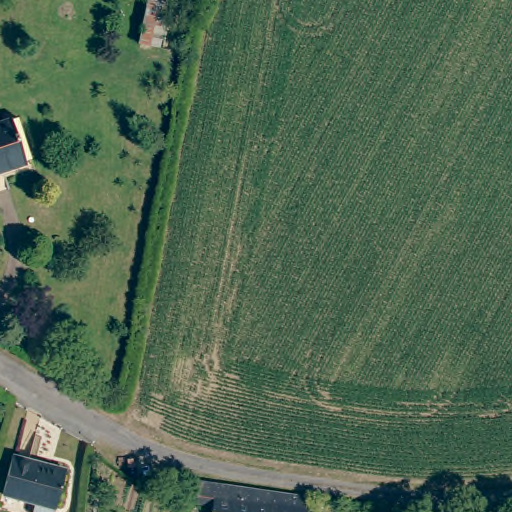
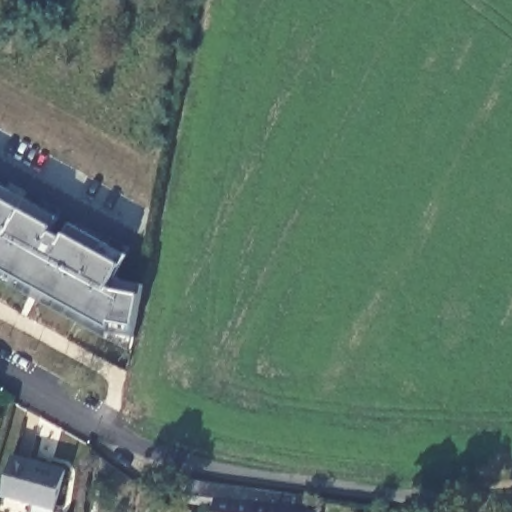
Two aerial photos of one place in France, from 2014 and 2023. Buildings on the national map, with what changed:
demolished [(20,161),(0,167),(0,126),(9,123),(20,161)]
new [(51,235),(62,242),(70,227),(127,258),(115,281),(121,285),(145,288),(135,341),(110,336),(109,342),(51,310),(56,302),(18,282),(13,290),(0,282),(0,188),(59,221),(51,235)]
unchanged [(66,472),(55,511),(1,497),(11,457),(66,472)]
unchanged [(297,512),(204,512),(205,504),(177,502),(180,485),(191,488),(231,493),(298,504),(297,512)]

